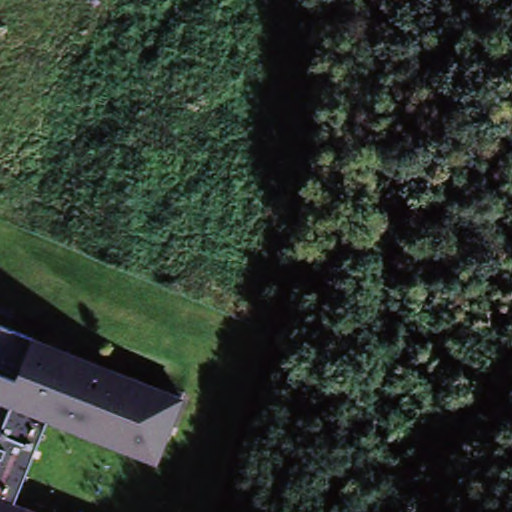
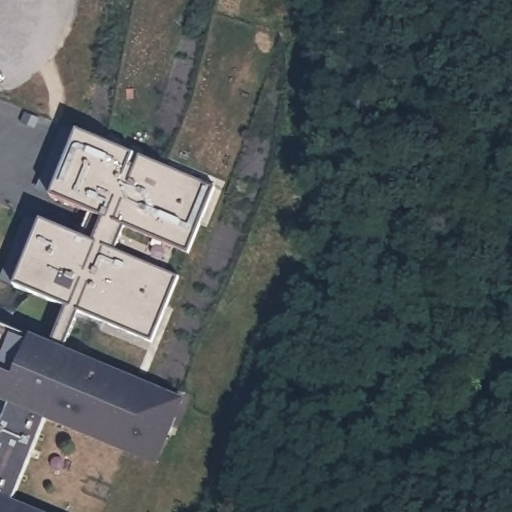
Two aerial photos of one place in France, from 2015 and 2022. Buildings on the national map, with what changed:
new [(213,186),(189,255),(123,226),(113,249),(179,277),(153,341),(81,312),(65,354),(50,348),(69,306),(18,286),(0,280),(0,271),(24,217),(40,221),(83,239),(92,213),(53,198),(34,194),(61,128),(76,131),(213,186)]
unchanged [(181,403),(154,467),(45,421),(10,504),(30,512),(0,512),(0,326),(181,403)]

